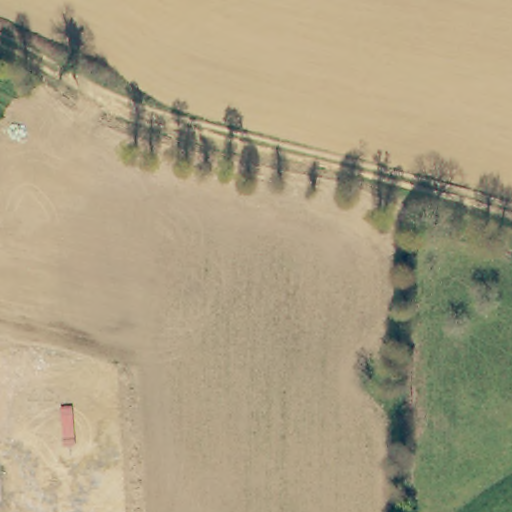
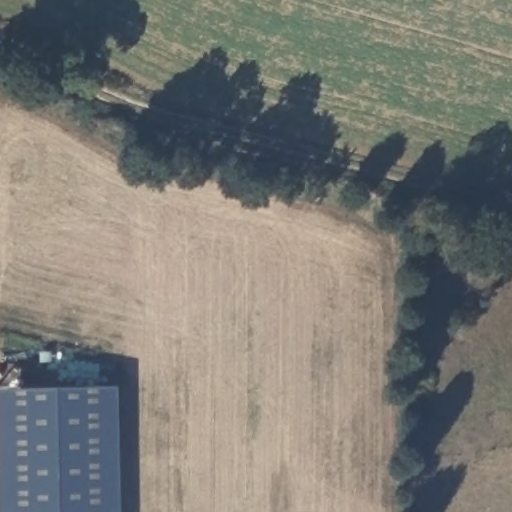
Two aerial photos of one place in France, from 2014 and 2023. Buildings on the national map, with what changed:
new [(119,512),(0,512),(0,389),(115,386),(119,512)]

